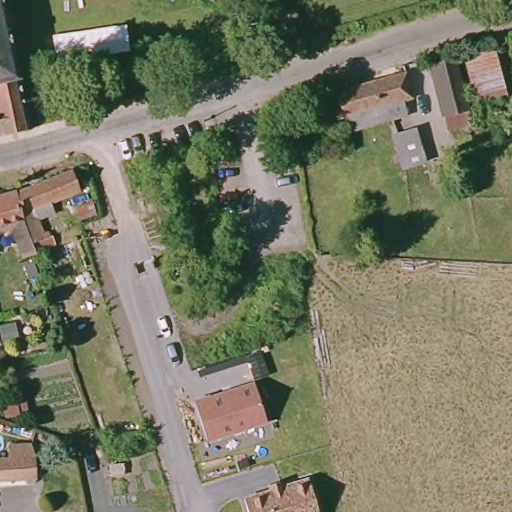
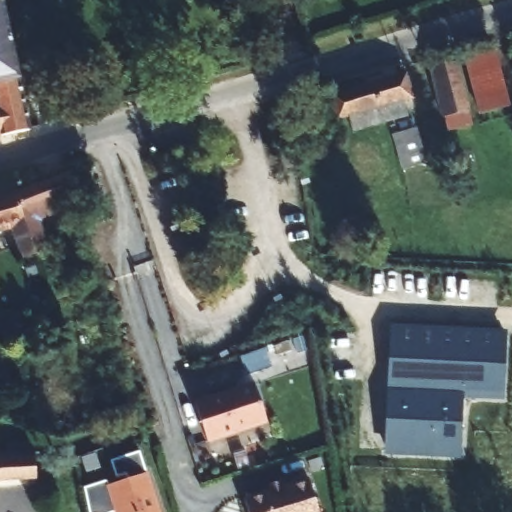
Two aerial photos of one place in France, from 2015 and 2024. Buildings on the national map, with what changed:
unchanged [(0,139),(0,6),(35,130),(36,134),(0,139)]
unchanged [(508,98),(476,104),(463,54),(494,46),(508,98)]
unchanged [(457,53),(473,127),(445,134),(441,117),(438,118),(425,61),(457,53)]
unchanged [(405,80),(412,106),(383,114),(326,129),(320,102),(332,99),(405,80)]
unchanged [(422,128),(431,165),(407,170),(399,134),(422,128)]
unchanged [(23,184),(80,164),(88,184),(50,198),(54,209),(46,213),(52,230),(39,234),(23,184)]
unchanged [(23,184),(39,234),(28,239),(20,215),(0,222),(0,192),(23,184)]
new [(386,454),(392,327),(418,328),(508,334),(502,399),(462,401),(461,458),(386,454)]
unchanged [(8,339),(10,359),(0,359),(0,339),(8,339)]
new [(290,341),(293,351),(279,355),(276,345),(290,341)]
new [(267,348),(273,365),(248,373),(242,356),(267,348)]
unchanged [(201,419),(195,399),(211,394),(212,396),(245,386),(256,383),(267,419),(231,430),(206,437),(201,419)]
unchanged [(15,454),(13,441),(31,440),(38,439),(39,453),(39,479),(0,480),(0,456),(15,454)]
new [(244,452),(248,464),(235,467),(232,455),(244,452)]
unchanged [(65,491),(47,494),(44,478),(62,474),(65,491)]
unchanged [(308,478),(318,512),(248,512),(244,497),(269,490),(267,485),(282,481),(283,486),(308,478)]
new [(101,486),(102,491),(140,479),(149,512),(81,512),(77,493),(101,486)]

